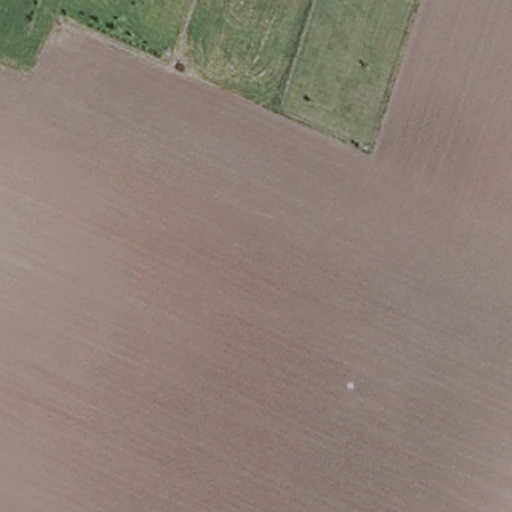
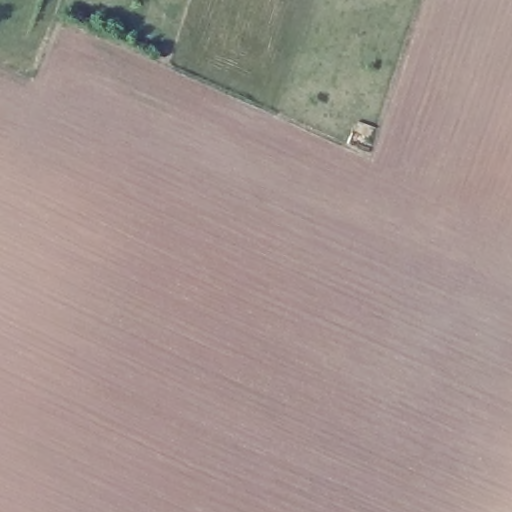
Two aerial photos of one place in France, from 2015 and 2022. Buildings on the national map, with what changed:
[]

